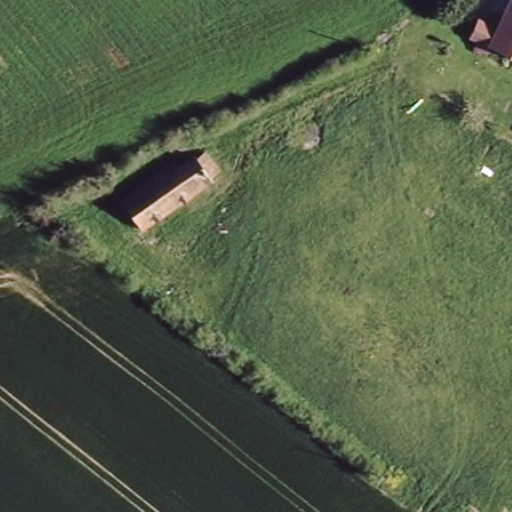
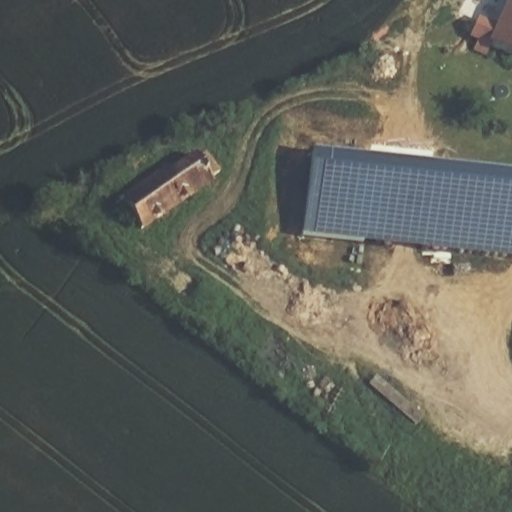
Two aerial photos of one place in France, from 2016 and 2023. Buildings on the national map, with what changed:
unchanged [(475,22),(490,29),(500,9),(492,6),(494,0),(512,0),(512,59),(468,39),(475,22)]
new [(300,236),(310,154),(512,177),(512,261),(300,236)]
unchanged [(138,232),(117,204),(165,170),(169,176),(195,160),(196,163),(205,156),(216,173),(207,179),(210,183),(138,232)]

